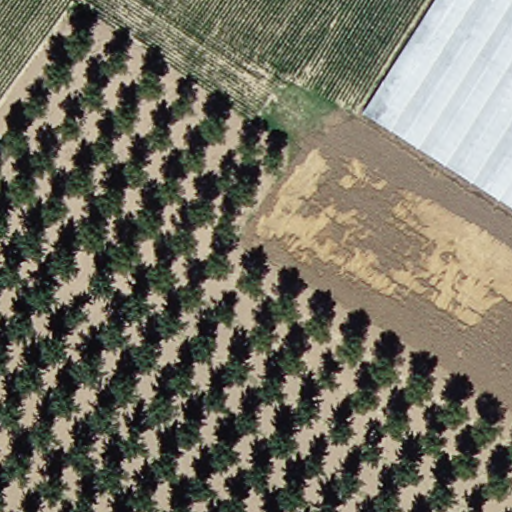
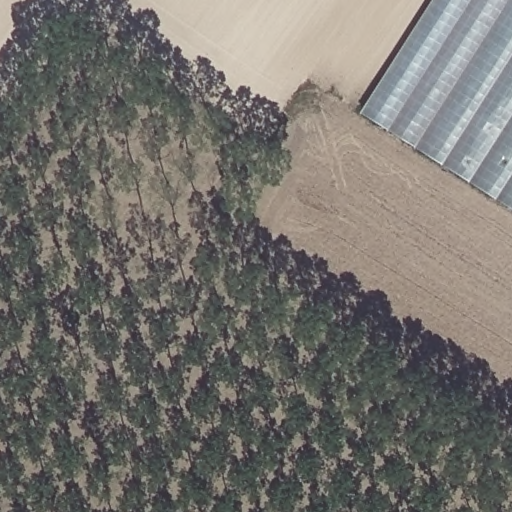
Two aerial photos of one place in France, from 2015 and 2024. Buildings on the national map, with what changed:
unchanged [(362,112),(434,0),(512,0),(512,207),(362,112)]

